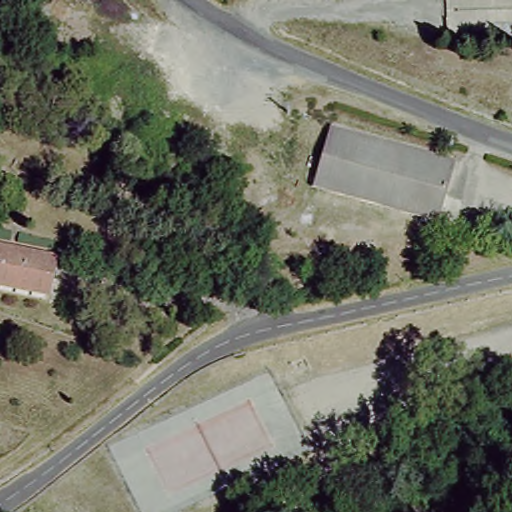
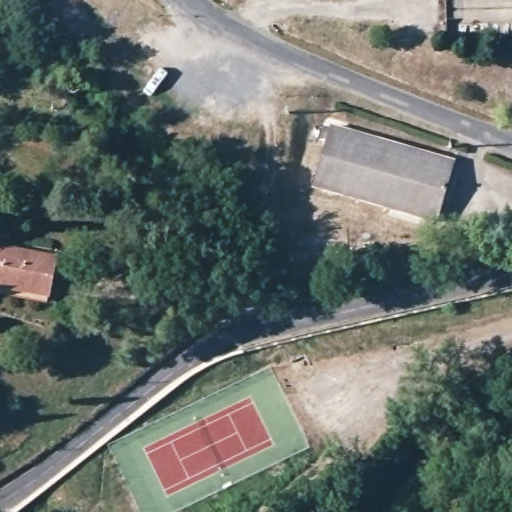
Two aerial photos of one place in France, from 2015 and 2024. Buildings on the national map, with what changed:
unchanged [(454,167),(436,224),(314,190),(331,134),(454,167)]
unchanged [(0,294),(0,247),(3,247),(18,249),(35,252),(55,256),(53,263),(48,300),(0,294)]

